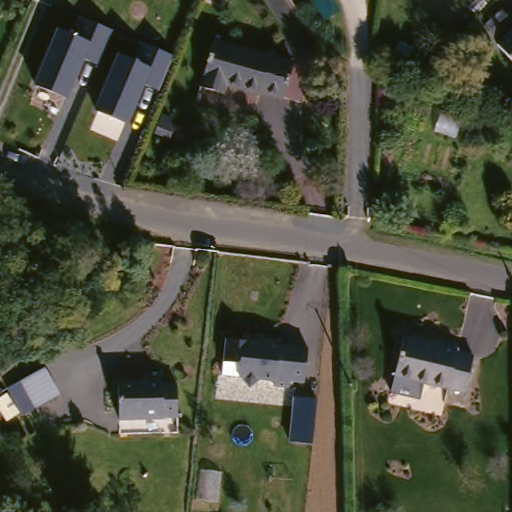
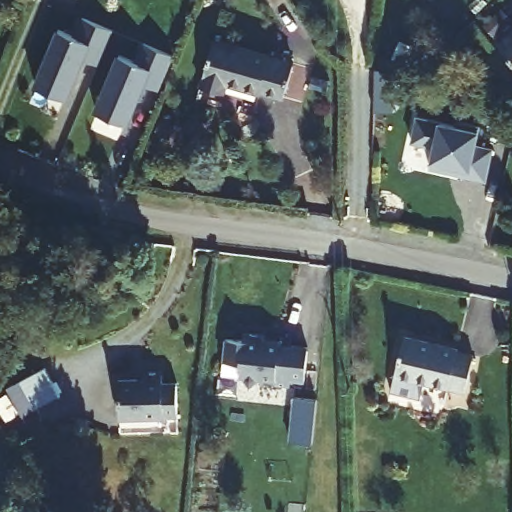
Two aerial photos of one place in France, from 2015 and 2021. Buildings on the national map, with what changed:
unchanged [(98,63),(85,58),(67,98),(36,85),(58,28),(78,36),(85,19),(114,31),(98,63)]
unchanged [(512,30),(512,64),(495,50),(512,30)]
unchanged [(293,101),(256,93),(251,110),(196,89),(214,33),(308,64),(293,101)]
unchanged [(158,88),(144,84),(128,123),(96,110),(119,53),(139,62),(146,44),(174,54),(158,88)]
new [(416,118),(455,126),(456,123),(479,129),(475,145),(492,150),(485,182),(466,178),(468,169),(450,165),(448,174),(428,169),(433,148),(411,143),(416,118)]
unchanged [(245,364),(227,362),(230,339),(247,341),(248,334),(269,335),(268,342),(284,344),(284,345),(312,348),(309,383),(294,381),(293,387),(278,386),(279,381),(264,379),(254,386),(246,377),(243,377),(245,364)]
unchanged [(391,394),(393,379),(400,337),(400,336),(459,343),(458,348),(475,350),(468,387),(451,385),(451,389),(428,385),(425,400),(391,394)]
unchanged [(59,363),(75,391),(37,412),(22,384),(59,363)]
unchanged [(148,379),(148,374),(166,373),(167,384),(181,384),(182,418),(168,418),(168,419),(123,420),(122,381),(148,379)]
unchanged [(33,409),(21,417),(9,397),(21,389),(33,409)]
unchanged [(289,441),(293,397),(316,399),(312,443),(289,441)]

